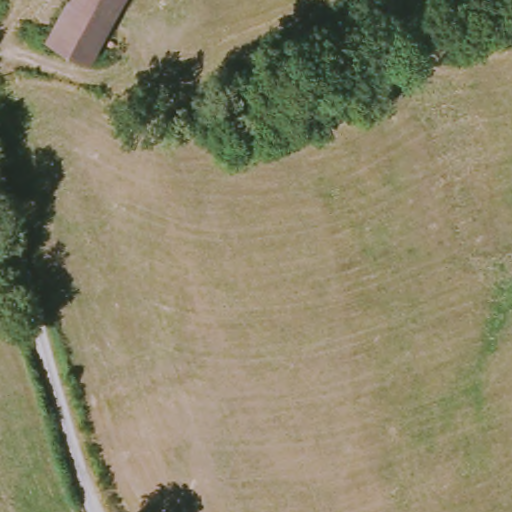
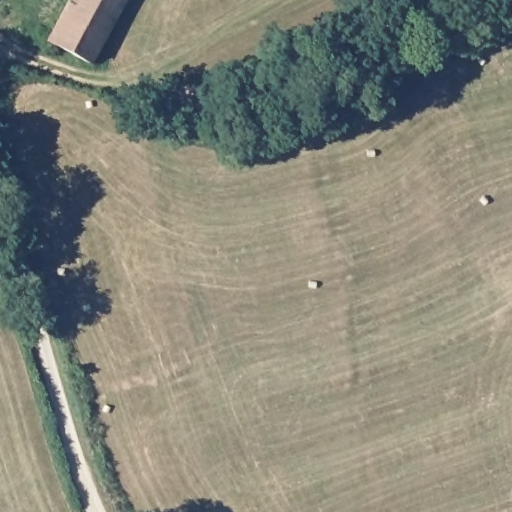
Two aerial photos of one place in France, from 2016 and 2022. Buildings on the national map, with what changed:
unchanged [(127,0),(90,62),(48,37),(70,0),(127,0)]

